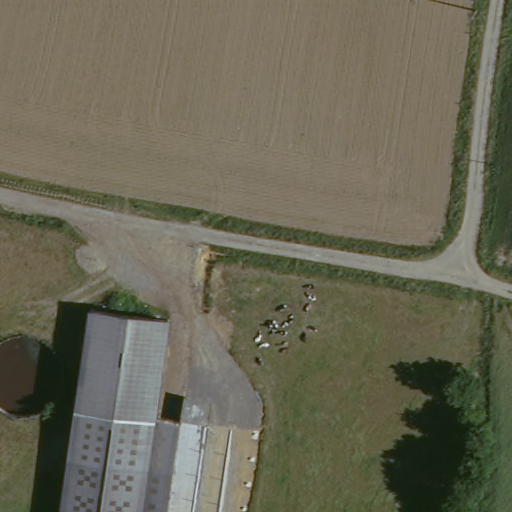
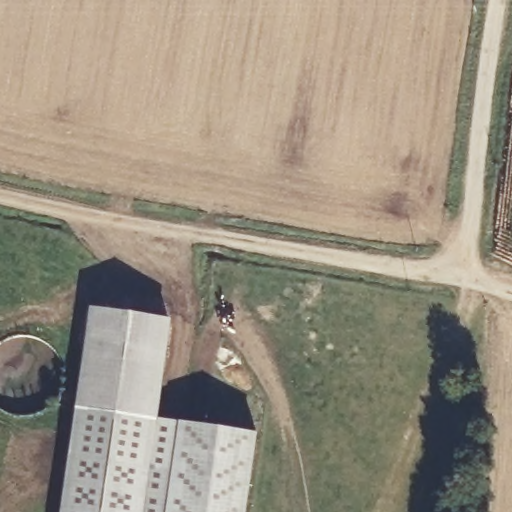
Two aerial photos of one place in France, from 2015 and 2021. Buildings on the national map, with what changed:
unchanged [(159,420),(84,408),(99,309),(175,321),(159,420)]
unchanged [(159,420),(185,424),(177,472),(76,457),(84,408),(159,420)]
new [(257,432),(246,512),(171,512),(177,472),(185,424),(257,432)]
unchanged [(76,457),(177,472),(171,512),(67,512),(76,457)]

